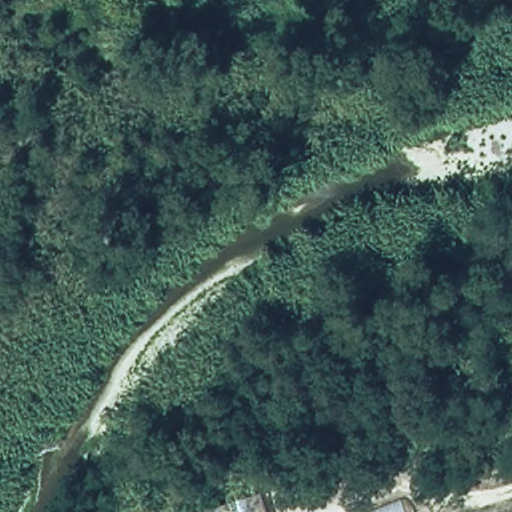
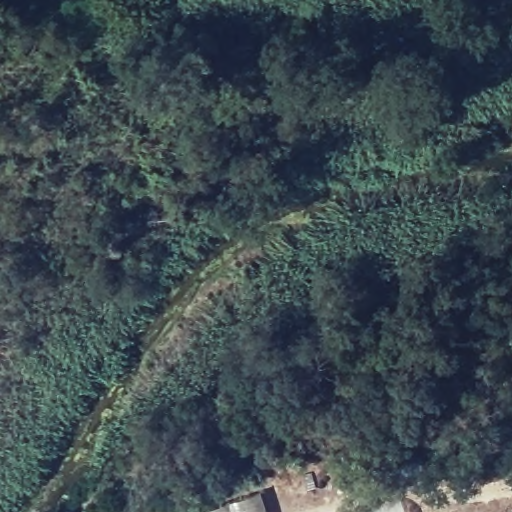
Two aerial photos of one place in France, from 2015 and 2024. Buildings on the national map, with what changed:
unchanged [(259,493),(265,512),(198,512),(259,493)]
unchanged [(403,497),(409,512),(365,512),(403,497)]

